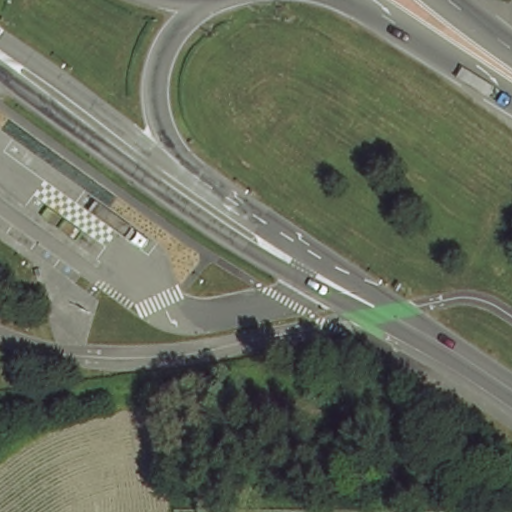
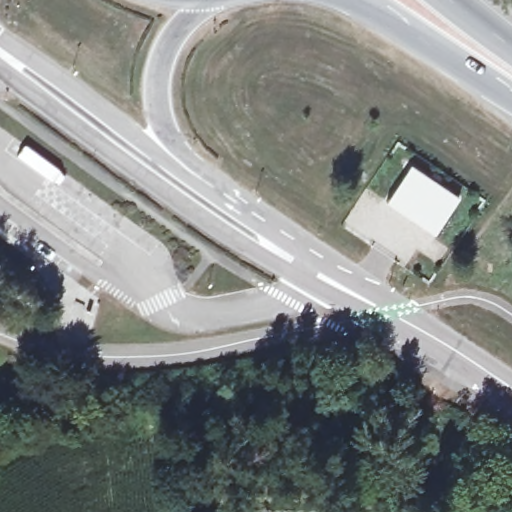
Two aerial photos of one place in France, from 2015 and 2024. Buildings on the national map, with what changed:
new [(410,164),(458,196),(432,234),(385,202),(410,164)]

